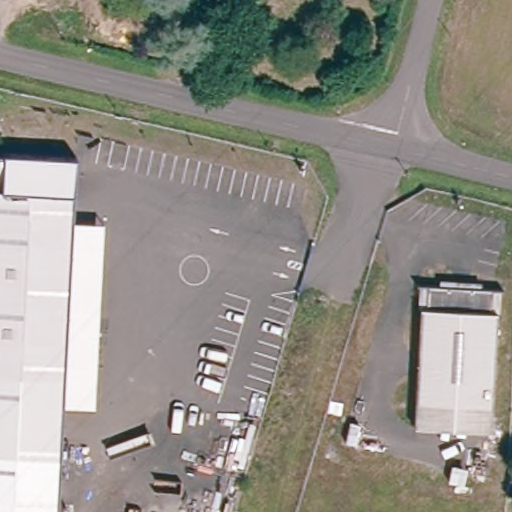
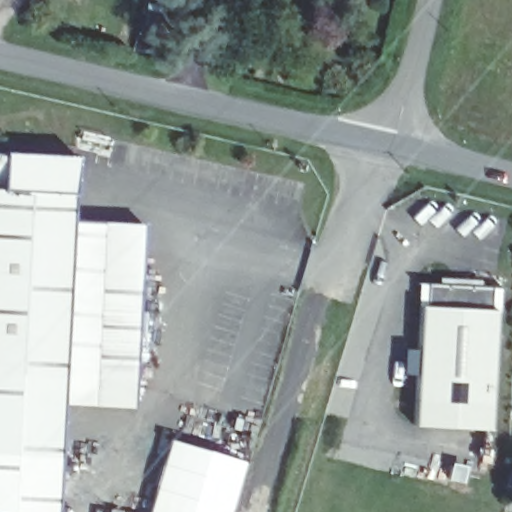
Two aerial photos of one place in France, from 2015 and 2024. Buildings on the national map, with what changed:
unchanged [(5,151),(5,149),(77,154),(58,457),(0,453),(0,151),(5,151)]
unchanged [(74,220),(104,222),(95,407),(62,404),(74,220)]
new [(104,222),(142,223),(132,407),(95,407),(104,222)]
unchanged [(418,307),(424,308),(425,285),(489,288),(487,311),(493,311),(489,405),(413,401),(418,307)]
unchanged [(489,405),(487,430),(412,426),(413,401),(489,405)]
new [(229,512),(148,512),(170,440),(244,461),(229,512)]
unchanged [(58,457),(56,512),(0,512),(0,453),(58,457)]
demolished [(164,478),(156,512),(88,512),(97,466),(164,478)]

